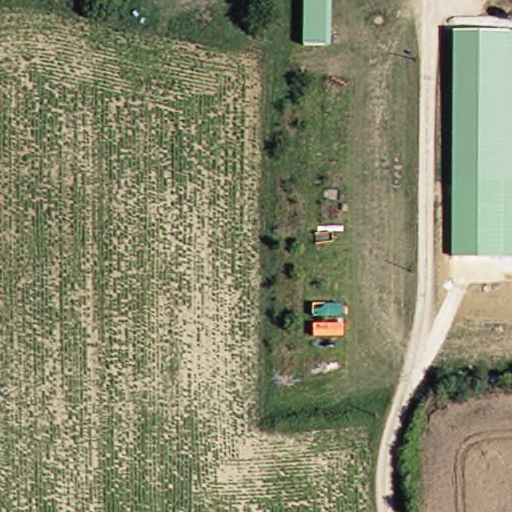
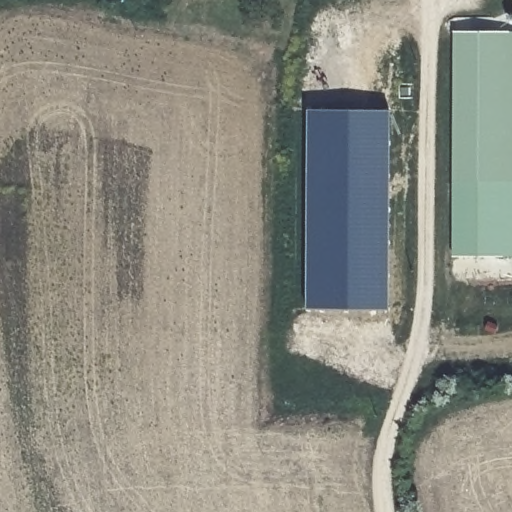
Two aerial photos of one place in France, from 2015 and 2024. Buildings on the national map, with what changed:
unchanged [(302,46),(303,0),(333,0),(333,48),(302,46)]
unchanged [(512,179),(453,179),(453,31),(512,29),(512,179)]
new [(388,308),(307,310),(308,107),(390,110),(388,308)]
new [(512,179),(512,257),(452,257),(453,179),(463,179),(512,179)]

